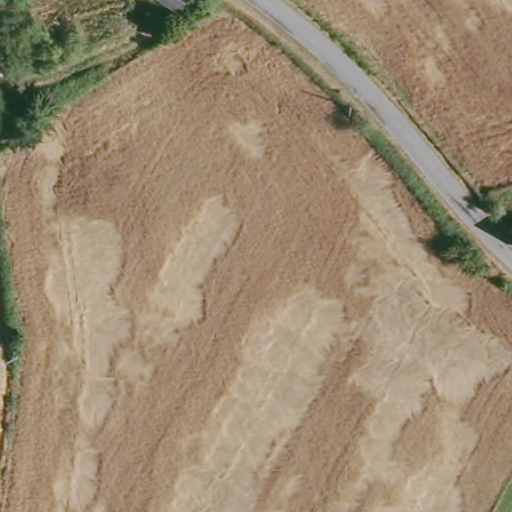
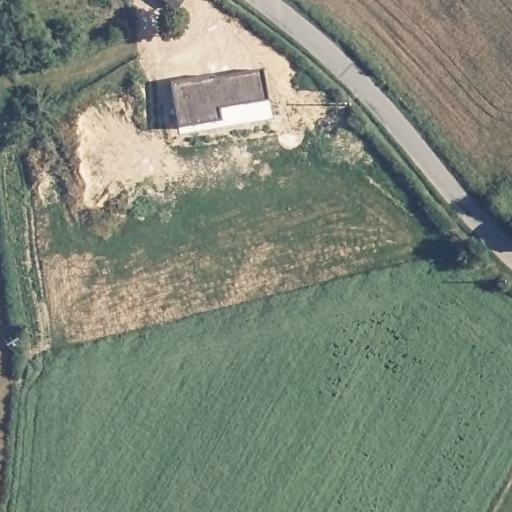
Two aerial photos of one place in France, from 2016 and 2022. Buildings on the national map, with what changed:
unchanged [(0,7),(0,0),(16,0),(17,2),(0,7)]
unchanged [(176,6),(167,0),(180,0),(176,6)]
unchanged [(4,74),(0,75),(0,56),(1,56),(4,74)]
new [(211,72),(212,74),(261,65),(266,97),(218,106),(221,118),(176,127),(168,80),(211,72)]

